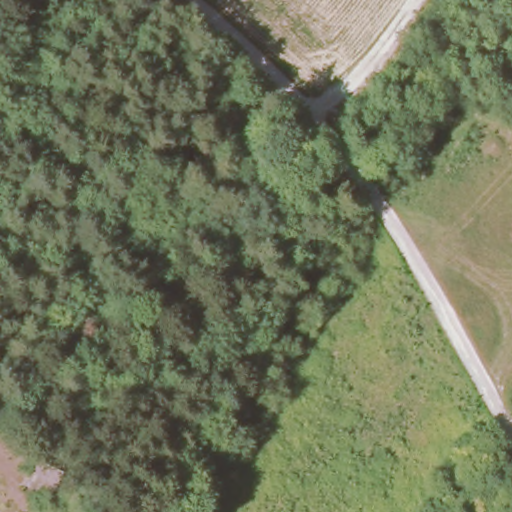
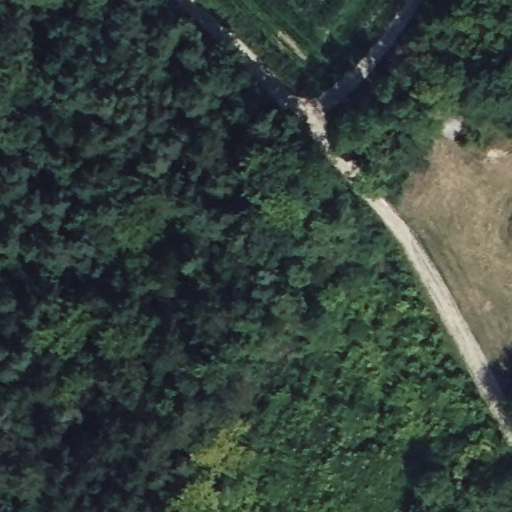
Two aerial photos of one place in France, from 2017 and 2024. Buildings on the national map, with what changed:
unchanged [(136,452),(117,476),(97,457),(118,435),(136,452)]

